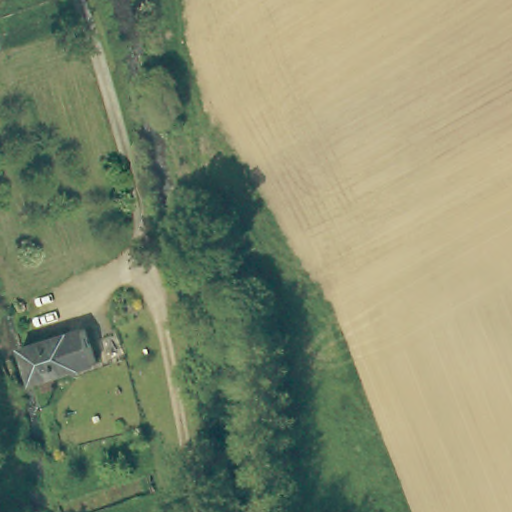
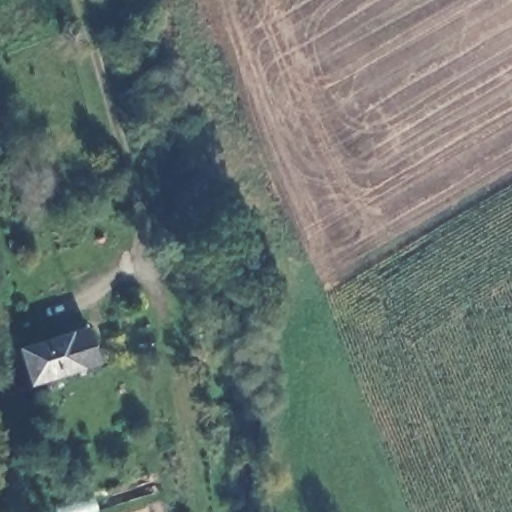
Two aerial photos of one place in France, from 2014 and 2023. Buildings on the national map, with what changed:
unchanged [(86,329),(97,361),(36,380),(32,382),(21,350),(32,346),(86,329)]

